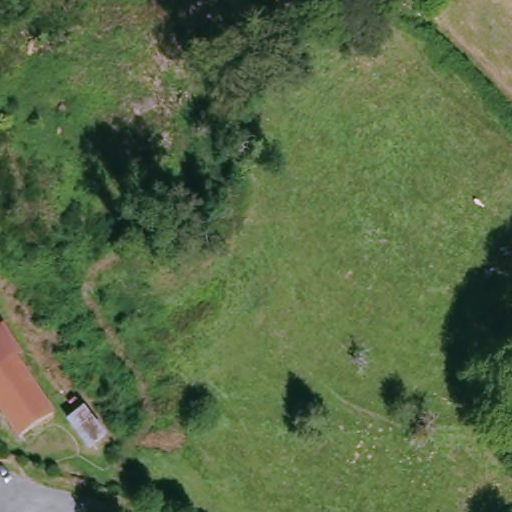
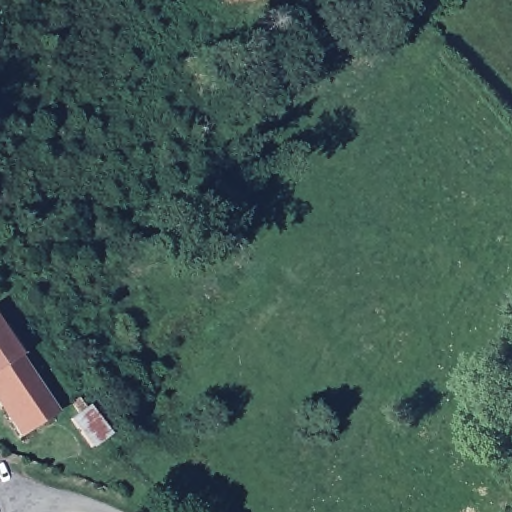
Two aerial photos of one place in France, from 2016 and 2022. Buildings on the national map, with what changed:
unchanged [(21,436),(0,404),(0,332),(55,414),(21,436)]
unchanged [(108,440),(90,452),(70,425),(82,417),(73,403),(80,398),(108,440)]

